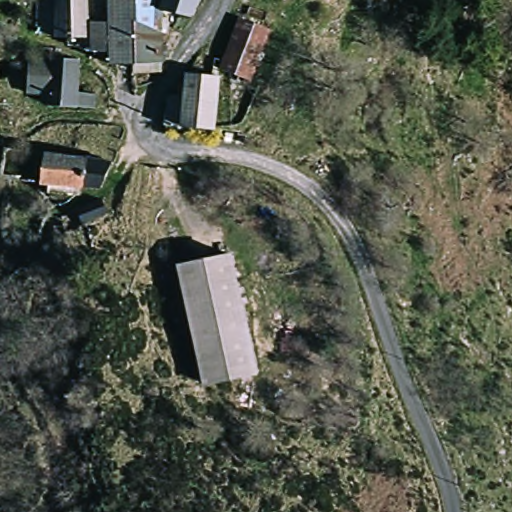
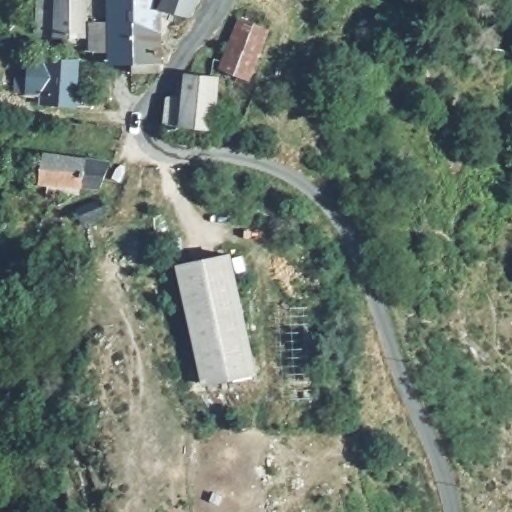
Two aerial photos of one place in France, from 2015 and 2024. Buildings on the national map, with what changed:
unchanged [(133,75),(133,67),(110,67),(110,56),(90,57),(89,41),(54,41),(53,0),(84,0),(85,23),(107,23),(107,0),(154,0),(155,29),(164,29),(164,75),(133,75)]
unchanged [(158,12),(162,0),(202,0),(194,20),(158,12)]
unchanged [(250,84),(218,71),(238,18),(270,30),(250,84)]
unchanged [(79,91),(95,91),(95,110),(40,108),(41,96),(26,96),(27,57),(81,61),(79,91)]
unchanged [(215,132),(163,130),(166,97),(181,97),(183,75),(220,77),(215,132)]
unchanged [(110,160),(106,197),(39,189),(44,154),(110,160)]
unchanged [(206,381),(173,268),(224,254),(256,365),(206,381)]
unchanged [(66,312),(53,348),(23,337),(36,302),(66,312)]

